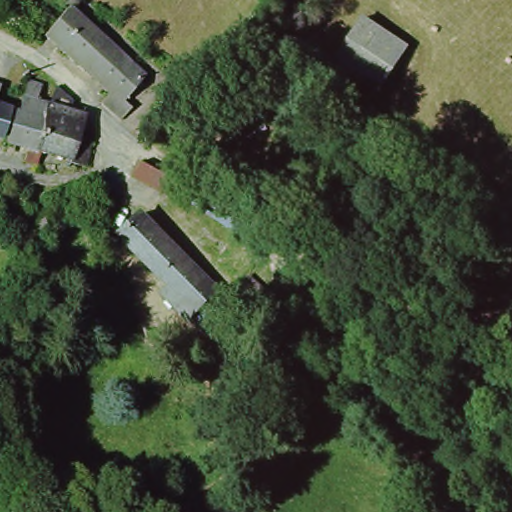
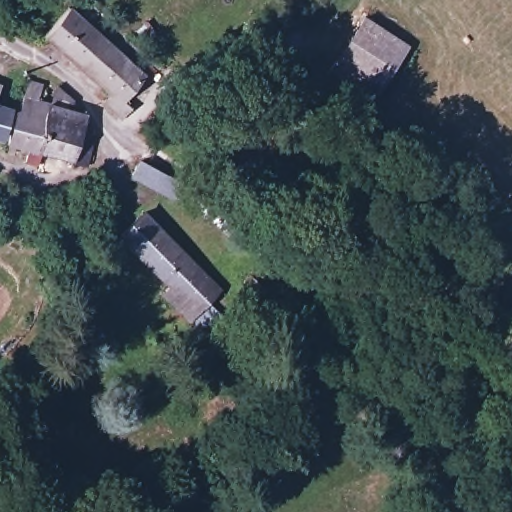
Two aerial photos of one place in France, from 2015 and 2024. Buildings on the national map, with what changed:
unchanged [(125,95),(135,105),(125,115),(102,93),(112,83),(49,24),(70,2),(78,9),(147,72),(125,95)]
unchanged [(367,17),(406,50),(370,93),(332,61),(367,17)]
unchanged [(17,95),(23,97),(19,112),(14,110),(7,143),(0,142),(0,99),(14,104),(17,95)]
unchanged [(277,125),(229,137),(220,109),(269,96),(277,125)]
unchanged [(23,163),(27,147),(7,143),(14,110),(19,112),(23,97),(50,106),(82,116),(78,134),(93,137),(87,165),(74,162),(67,161),(67,157),(39,151),(35,166),(23,163)]
unchanged [(175,199),(134,173),(142,159),(184,183),(175,199)]
unchanged [(196,333),(181,317),(159,292),(167,283),(118,229),(140,207),(215,287),(212,288),(200,298),(215,316),(196,333)]
unchanged [(0,479),(0,439),(19,458),(0,480),(0,479)]

